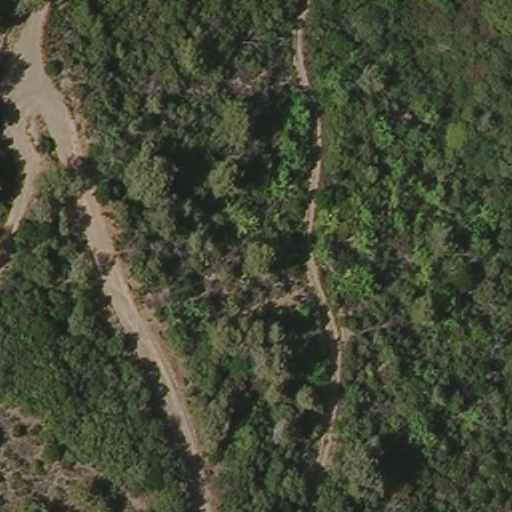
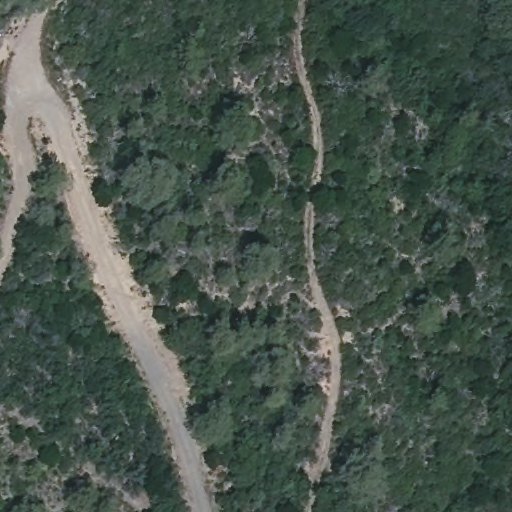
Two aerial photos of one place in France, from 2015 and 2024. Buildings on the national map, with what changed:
[]

